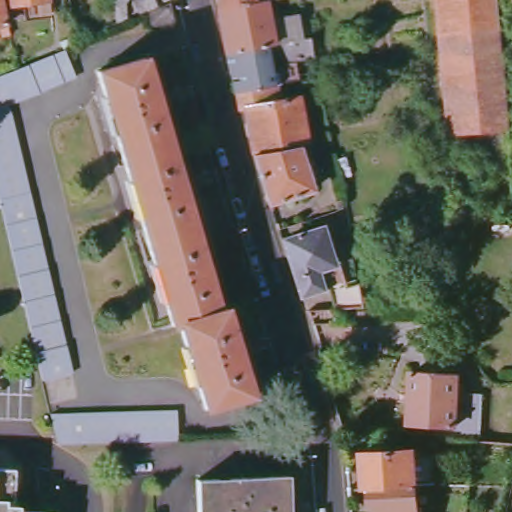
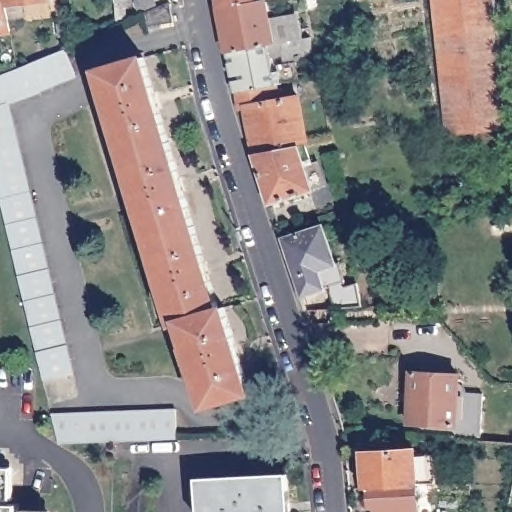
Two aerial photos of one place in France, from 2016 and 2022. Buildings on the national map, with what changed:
unchanged [(12,36),(4,38),(2,26),(0,26),(0,0),(4,0),(5,9),(12,36)]
unchanged [(52,2),(5,9),(4,0),(52,0),(52,2)]
unchanged [(152,27),(147,14),(159,8),(155,0),(177,0),(170,3),(175,22),(152,27)]
unchanged [(218,0),(284,0),(285,1),(265,5),(219,14),(218,0)]
unchanged [(507,126),(447,133),(433,0),(494,0),(507,126)]
unchanged [(265,5),(274,49),(227,57),(219,14),(265,5)]
unchanged [(227,57),(274,49),(312,43),(316,62),(286,67),(285,60),(276,62),(282,89),(277,90),(242,97),(238,76),(232,78),(227,57)]
unchanged [(0,77),(19,70),(66,50),(76,78),(8,105),(75,375),(44,381),(37,351),(0,198),(0,77)]
unchanged [(180,326),(175,326),(100,73),(145,57),(145,58),(219,308),(224,307),(250,394),(205,408),(180,326)]
unchanged [(237,98),(242,97),(277,90),(280,107),(300,103),(309,148),(307,148),(254,158),(246,114),(242,115),(237,98)]
unchanged [(254,158),(307,148),(314,169),(307,171),(314,195),(270,207),(254,158)]
unchanged [(281,239),(325,227),(335,263),(339,261),(345,282),(302,294),(290,255),(287,256),(281,239)]
unchanged [(364,307),(335,307),(332,290),(359,284),(364,307)]
unchanged [(474,441),(455,440),(454,438),(415,433),(415,424),(408,423),(412,372),(460,377),(459,391),(482,394),(479,442),(474,441)]
unchanged [(177,441),(59,445),(52,416),(178,412),(178,441),(177,441)]
unchanged [(435,484),(431,485),(417,485),(370,489),(364,489),(362,453),(415,450),(415,456),(433,454),(435,484)]
unchanged [(294,477),(295,512),(203,512),(202,480),(294,477)]
unchanged [(7,505),(19,505),(19,512),(0,512),(0,478),(7,478),(7,505)]
unchanged [(419,512),(377,512),(376,505),(372,506),(370,489),(417,485),(419,512)]

